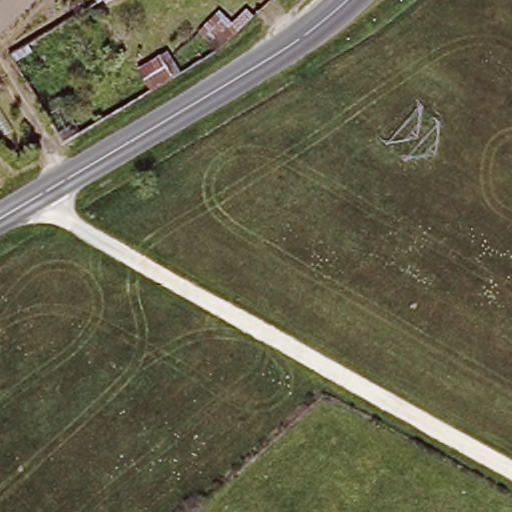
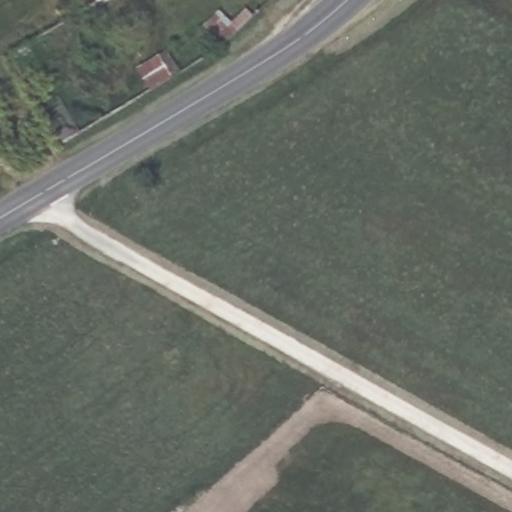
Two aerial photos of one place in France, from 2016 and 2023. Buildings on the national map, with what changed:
unchanged [(196,32),(214,13),(221,20),(245,3),(254,18),(218,50),(196,32)]
unchanged [(136,66),(169,51),(181,76),(149,92),(136,66)]
unchanged [(81,131),(62,141),(43,105),(63,93),(81,131)]

